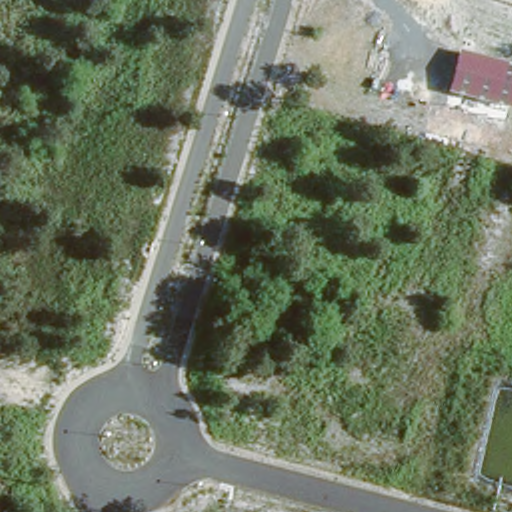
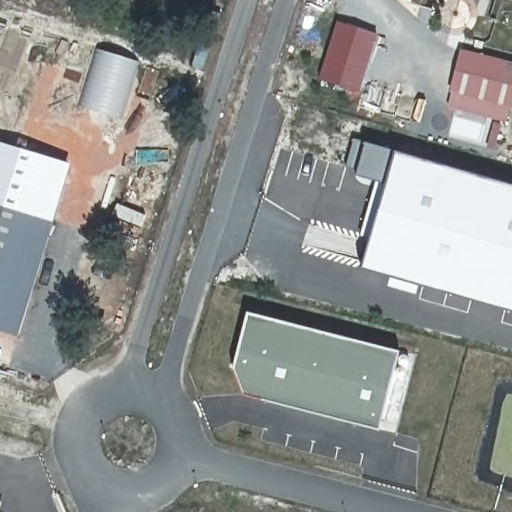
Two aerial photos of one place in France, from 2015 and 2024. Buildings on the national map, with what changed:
new [(378,35),(360,92),(318,79),(337,21),(378,35)]
new [(96,49),(138,64),(122,120),(77,109),(96,49)]
unchanged [(510,106),(450,91),(459,52),(512,64),(512,99),(510,106)]
new [(419,283),(416,293),(388,286),(392,275),(363,267),(371,239),(359,236),(376,180),(357,174),(358,169),(346,166),(354,140),(366,144),(395,152),(512,185),(512,310),(419,283)]
new [(53,221),(0,205),(0,142),(71,164),(53,221)]
new [(0,205),(53,221),(17,337),(0,331),(0,205)]
new [(398,350),(378,430),(242,395),(232,368),(246,312),(398,350)]

